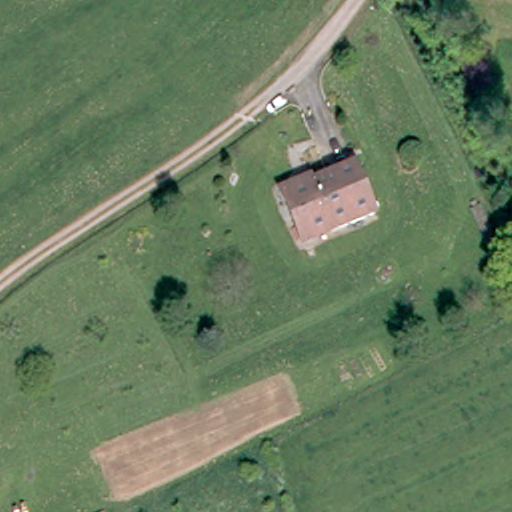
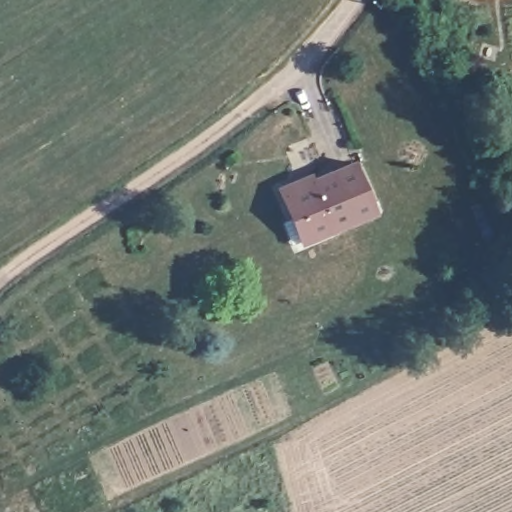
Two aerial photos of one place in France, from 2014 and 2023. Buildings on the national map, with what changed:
unchanged [(279,192),(297,184),(311,178),(314,184),(356,165),(378,214),(311,243),(304,246),(293,222),(279,192)]

